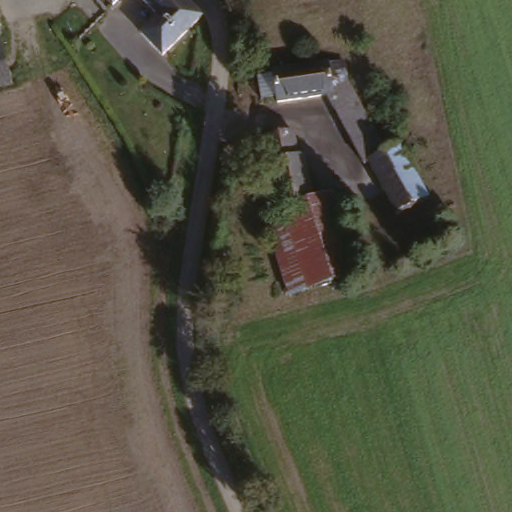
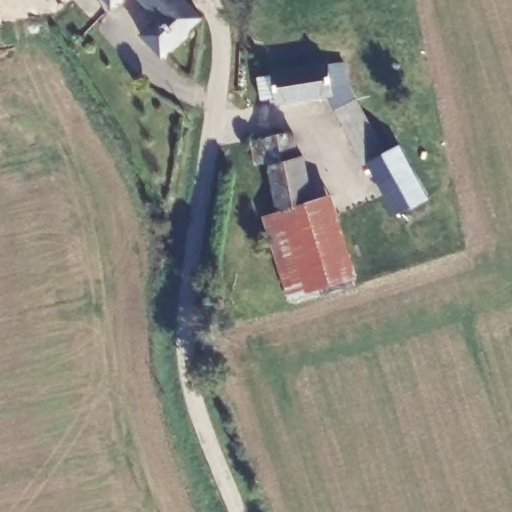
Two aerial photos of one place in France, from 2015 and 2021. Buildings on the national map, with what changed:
unchanged [(118,6),(111,0),(123,0),(118,6)]
unchanged [(204,14),(199,20),(167,55),(146,35),(162,17),(144,0),(189,0),(204,14)]
unchanged [(15,82),(0,87),(0,44),(2,43),(15,82)]
unchanged [(393,152),(408,149),(437,205),(405,218),(377,167),(333,97),(287,97),(265,102),(257,70),(274,67),(284,66),(344,60),(391,148),(393,152)]
unchanged [(299,151),(316,201),(284,209),(274,181),(271,161),(262,162),(258,138),(257,131),(294,128),(299,151)]
unchanged [(273,212),(284,209),(316,201),(336,195),(357,272),(292,293),(273,212)]

